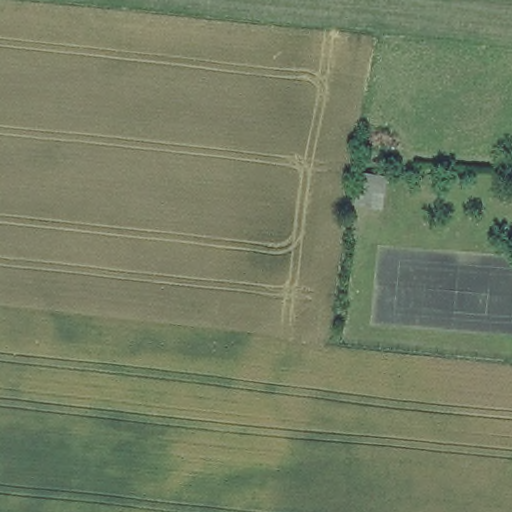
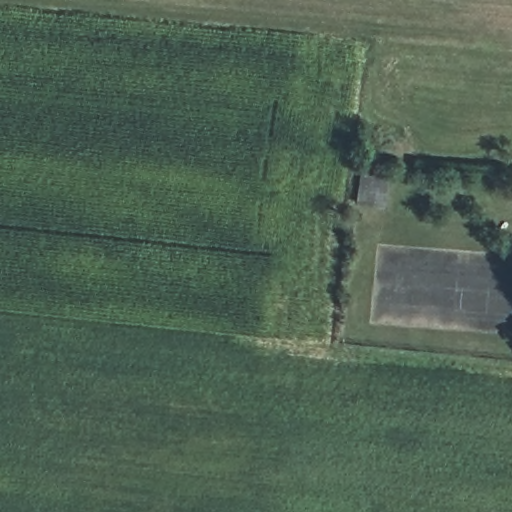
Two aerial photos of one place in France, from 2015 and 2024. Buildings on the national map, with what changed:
unchanged [(358,208),(362,173),(389,174),(385,213),(358,208)]

